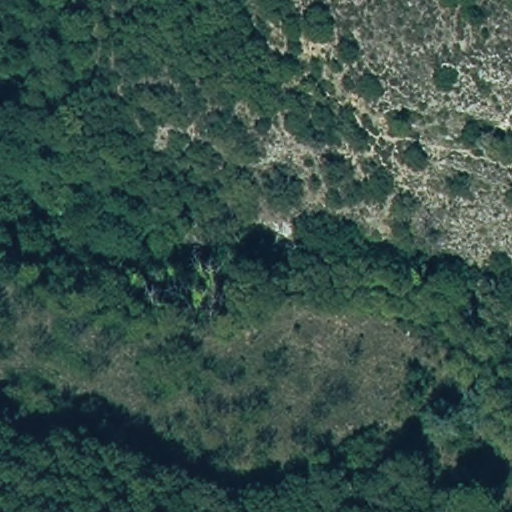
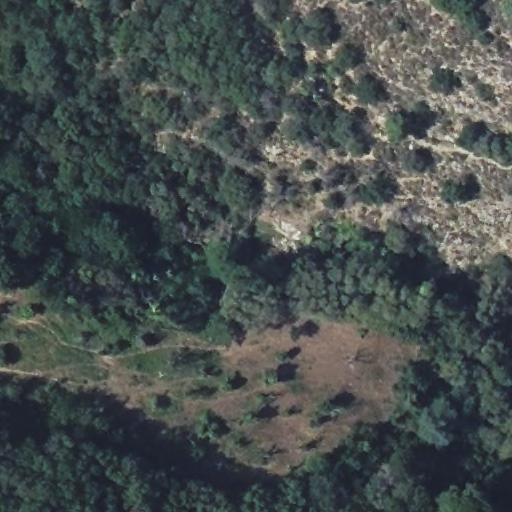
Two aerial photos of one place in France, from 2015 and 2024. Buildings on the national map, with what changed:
[]

